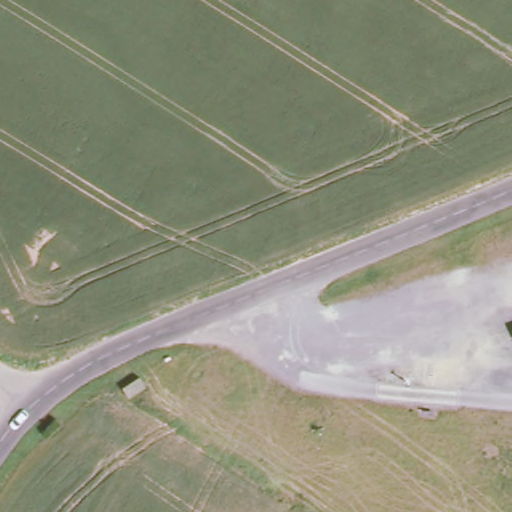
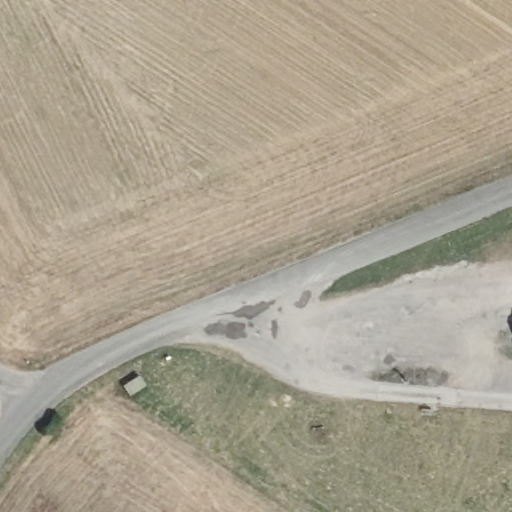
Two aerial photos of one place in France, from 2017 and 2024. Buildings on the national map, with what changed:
unchanged [(144,393),(127,401),(122,390),(139,382),(144,393)]

